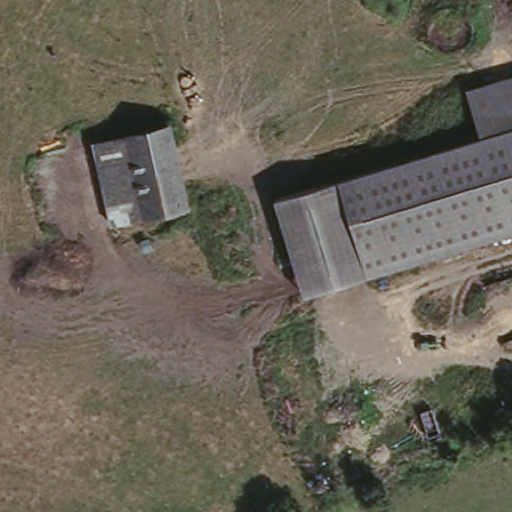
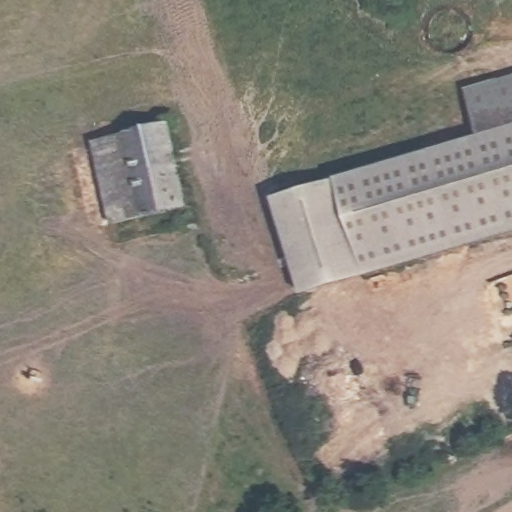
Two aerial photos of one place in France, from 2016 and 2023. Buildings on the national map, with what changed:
unchanged [(512,238),(303,302),(273,201),(478,140),(466,94),(512,81),(512,238)]
unchanged [(188,206),(147,216),(125,138),(165,127),(188,206)]
unchanged [(147,216),(112,226),(93,148),(125,138),(147,216)]

